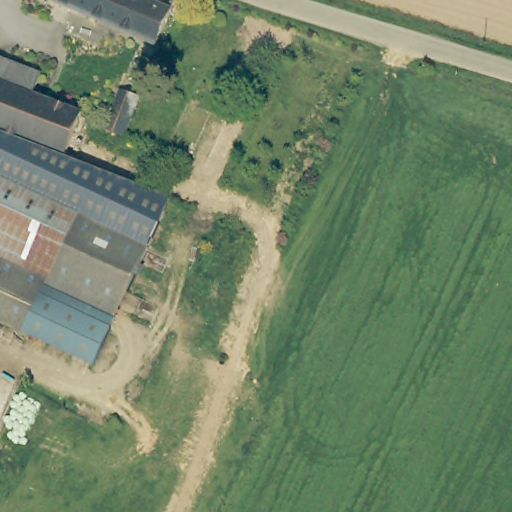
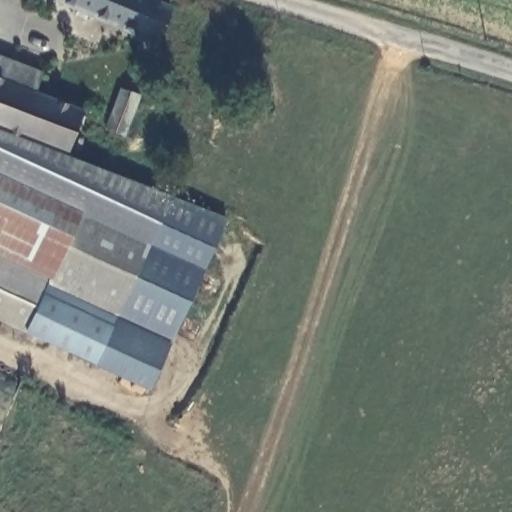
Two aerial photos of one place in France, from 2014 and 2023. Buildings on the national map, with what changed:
unchanged [(172,8),(157,43),(56,0),(154,0),(172,8)]
unchanged [(0,132),(0,60),(47,77),(40,97),(89,116),(74,155),(72,160),(0,132)]
unchanged [(123,89),(140,94),(125,135),(109,129),(123,89)]
unchanged [(74,155),(176,201),(100,368),(0,322),(0,132),(72,160),(74,155)]
new [(226,221),(150,390),(100,368),(176,201),(226,221)]

